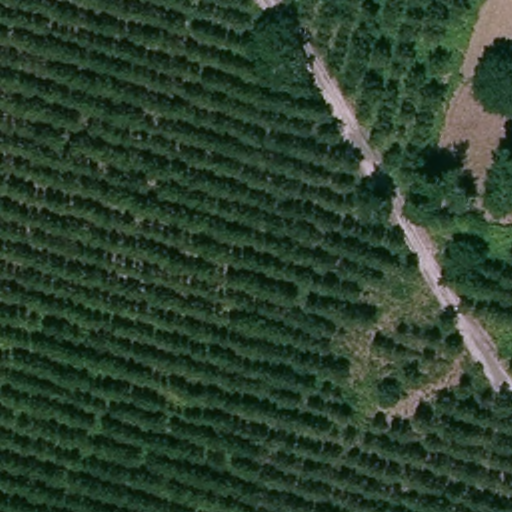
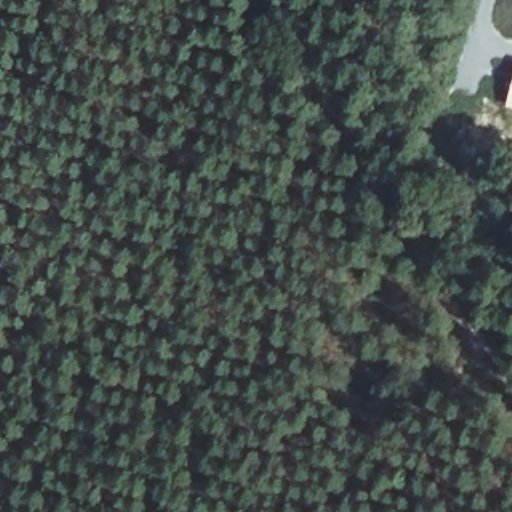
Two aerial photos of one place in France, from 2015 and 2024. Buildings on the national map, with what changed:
new [(512,81),(512,108),(505,105),(512,81)]

